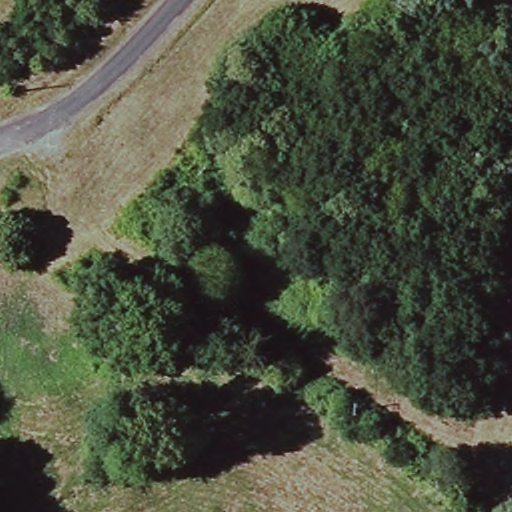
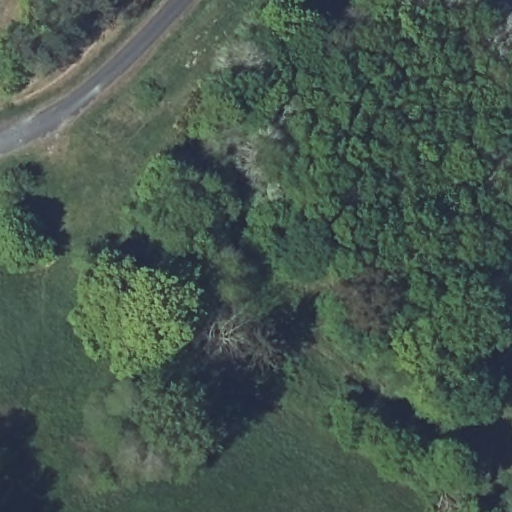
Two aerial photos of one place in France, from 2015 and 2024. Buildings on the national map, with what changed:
[]

